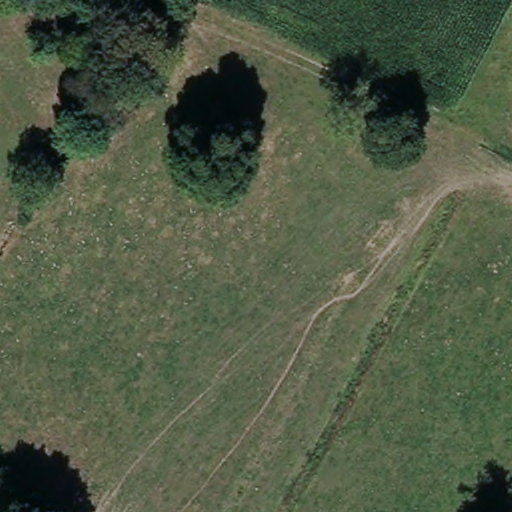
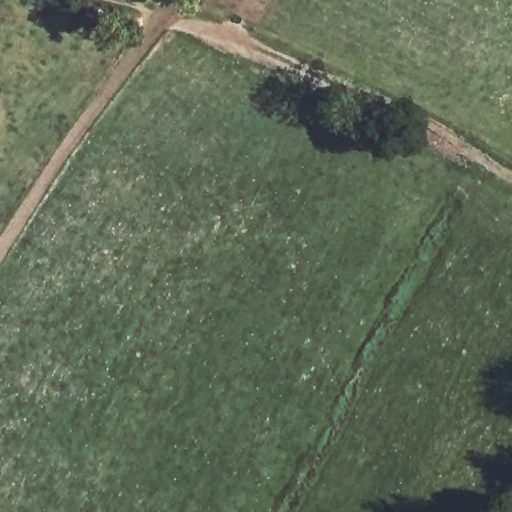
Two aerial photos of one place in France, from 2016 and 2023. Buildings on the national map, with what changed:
[]

